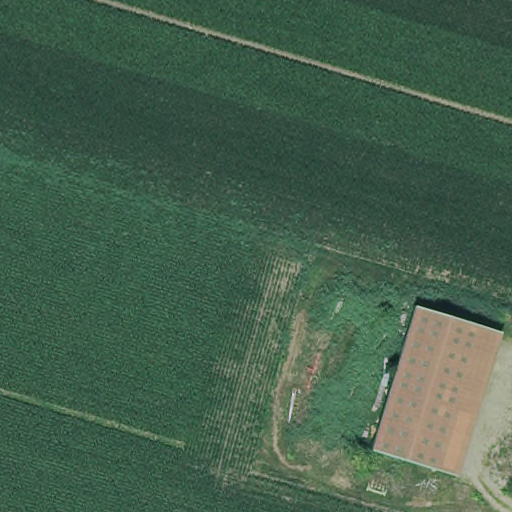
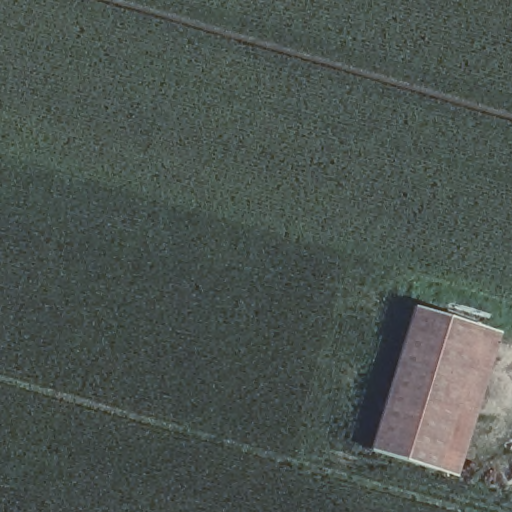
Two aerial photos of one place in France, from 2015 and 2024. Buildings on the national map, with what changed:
unchanged [(484,330),(443,474),(376,455),(419,309),(484,330)]

